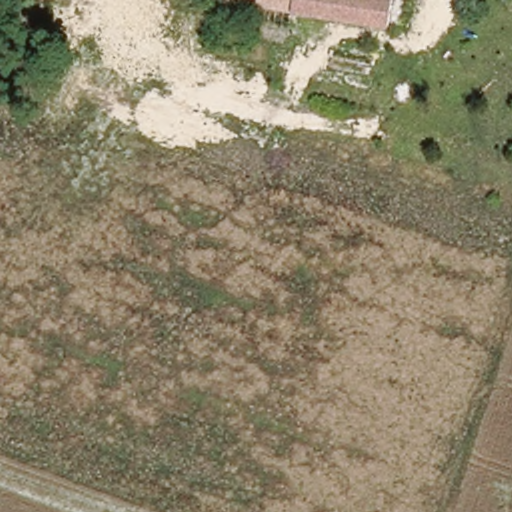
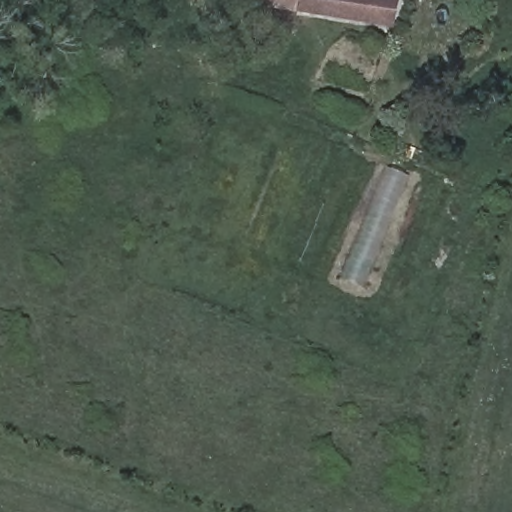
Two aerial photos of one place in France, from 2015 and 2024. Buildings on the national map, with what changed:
unchanged [(391,4),(394,4),(388,32),(248,0),(392,0),(391,4)]
new [(361,285),(338,274),(381,166),(405,175),(361,285)]

